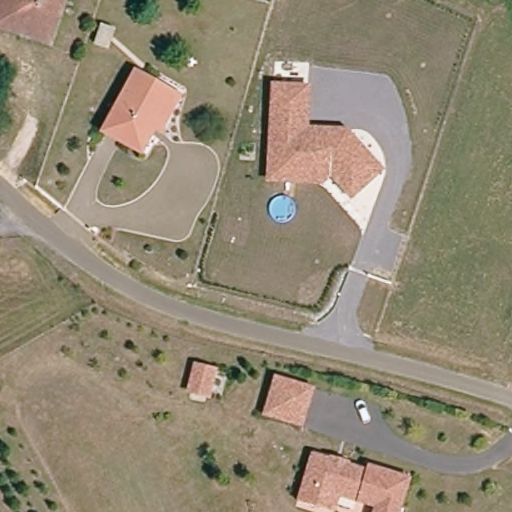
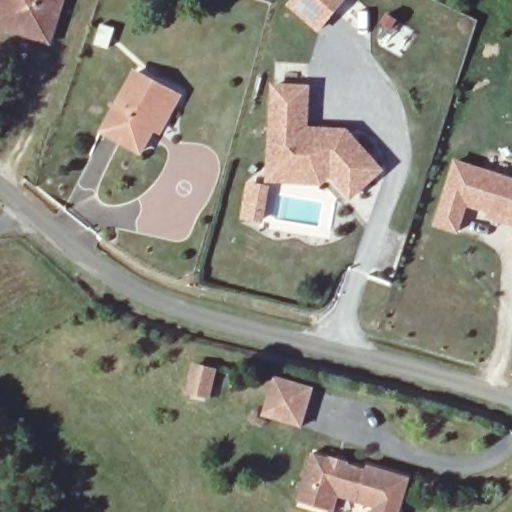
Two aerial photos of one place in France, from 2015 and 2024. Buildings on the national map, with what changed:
unchanged [(0,26),(0,0),(64,0),(46,44),(0,26)]
new [(288,4),(291,0),(347,0),(320,33),(288,4)]
unchanged [(158,126),(146,120),(143,126),(149,129),(139,150),(100,131),(130,69),(175,91),(158,126)]
unchanged [(270,83),(312,84),(310,128),(349,129),(386,169),(350,201),(329,178),(321,186),(266,184),(270,83)]
new [(512,227),(486,219),(487,212),(470,207),(461,234),(434,226),(454,159),(512,178),(512,227)]
unchanged [(193,362),(219,369),(211,399),(185,393),(193,362)]
unchanged [(274,376),(315,387),(303,429),(262,416),(274,376)]
unchanged [(349,493),(344,512),(340,512),(308,502),(323,454),(341,459),(342,454),(361,459),(359,463),(379,469),(380,464),(423,477),(411,512),(383,512),(385,505),(368,499),(353,494),(349,493)]

